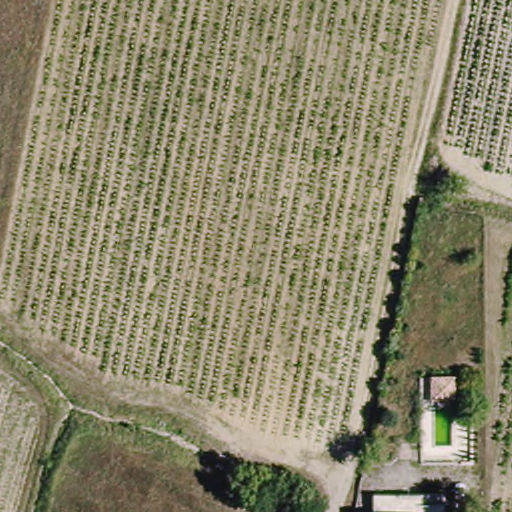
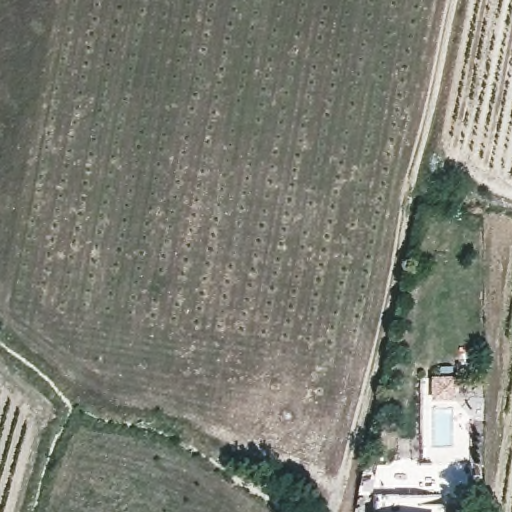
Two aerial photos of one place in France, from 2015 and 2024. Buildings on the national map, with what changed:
unchanged [(428,373),(457,372),(458,391),(428,393),(428,373)]
unchanged [(371,492),(437,492),(436,512),(369,512),(371,492)]

